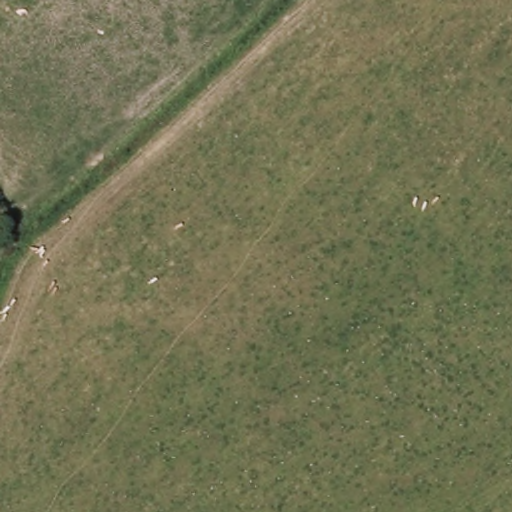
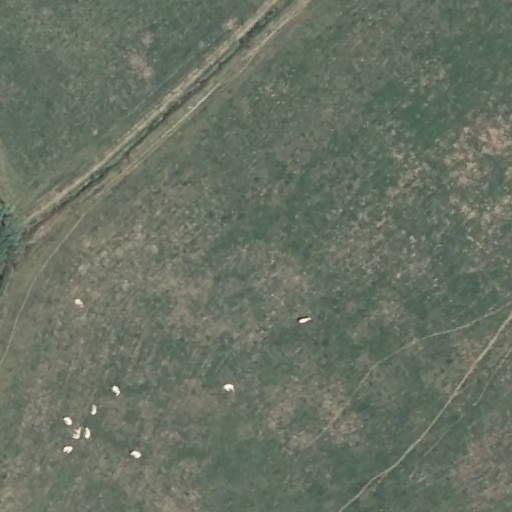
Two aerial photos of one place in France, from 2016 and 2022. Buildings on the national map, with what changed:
[]

